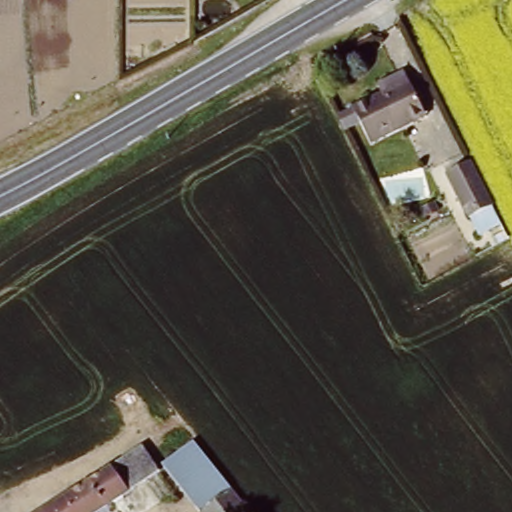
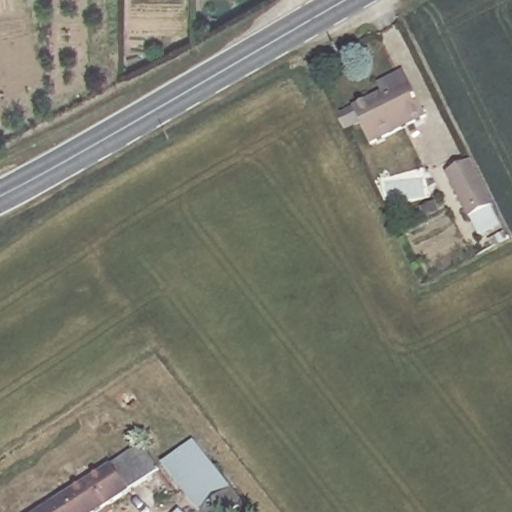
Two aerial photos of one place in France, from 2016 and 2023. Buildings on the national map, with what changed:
unchanged [(373,145),(355,109),(387,94),(409,82),(412,88),(427,118),(373,145)]
unchanged [(503,224),(482,235),(460,190),(480,180),(503,224)]
unchanged [(246,503),(236,512),(204,512),(167,467),(196,443),(246,503)]
unchanged [(145,448),(160,472),(99,512),(45,512),(145,448)]

